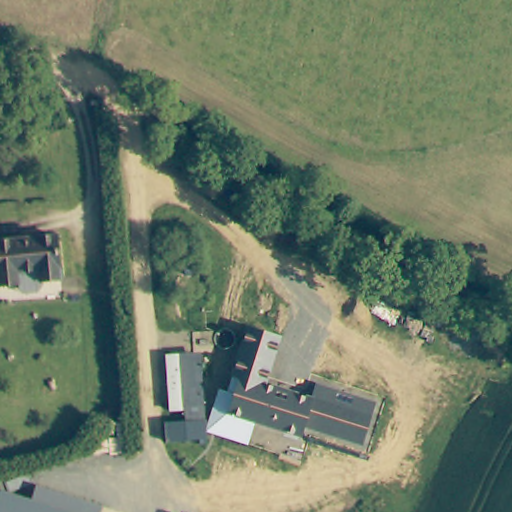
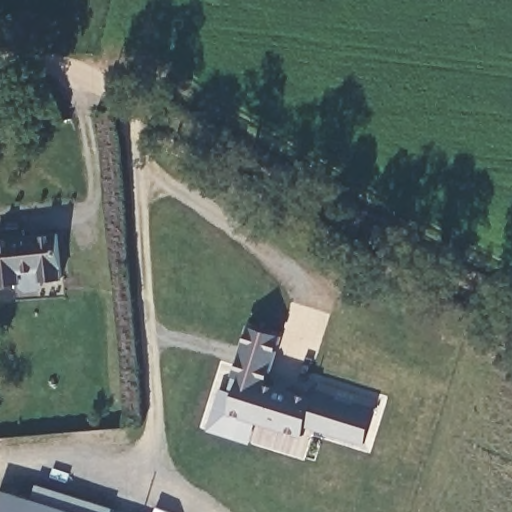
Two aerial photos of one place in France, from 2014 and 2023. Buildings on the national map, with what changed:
unchanged [(33,292),(22,293),(17,288),(16,283),(0,285),(0,240),(55,235),(59,280),(37,282),(38,287),(33,292)]
unchanged [(306,428),(303,438),(257,424),(250,445),(207,431),(220,388),(230,390),(249,328),(284,337),(270,384),(312,396),(316,385),(376,403),(363,447),(306,428)]
demolished [(161,356),(200,353),(204,409),(167,413),(161,356)]
unchanged [(35,485),(100,505),(98,512),(26,512),(35,485)]
unchanged [(30,500),(26,512),(0,512),(0,492),(30,500)]

